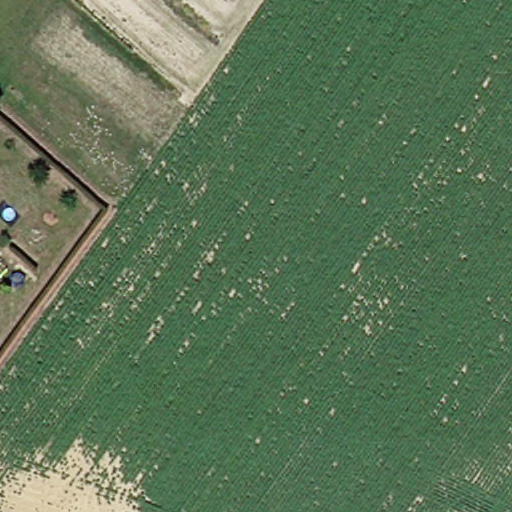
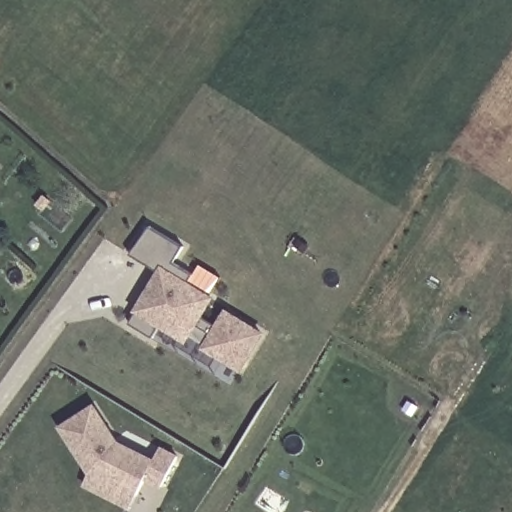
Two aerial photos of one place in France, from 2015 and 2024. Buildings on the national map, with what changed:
new [(148,226),(179,245),(170,261),(190,273),(184,281),(217,301),(207,317),(222,325),(230,309),(269,331),(249,367),(210,345),(212,342),(198,335),(194,341),(169,326),(162,340),(134,323),(163,273),(128,254),(148,226)]
new [(169,326),(194,341),(198,335),(212,342),(210,345),(249,367),(240,385),(162,340),(169,326)]
new [(87,408),(115,440),(154,460),(159,448),(177,457),(160,489),(143,480),(128,510),(81,486),(88,474),(55,432),(87,408)]

